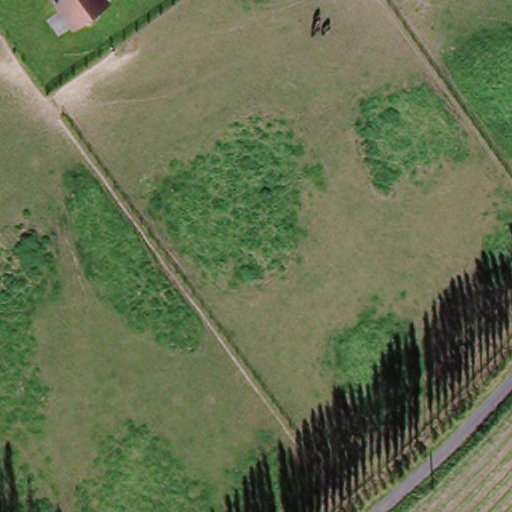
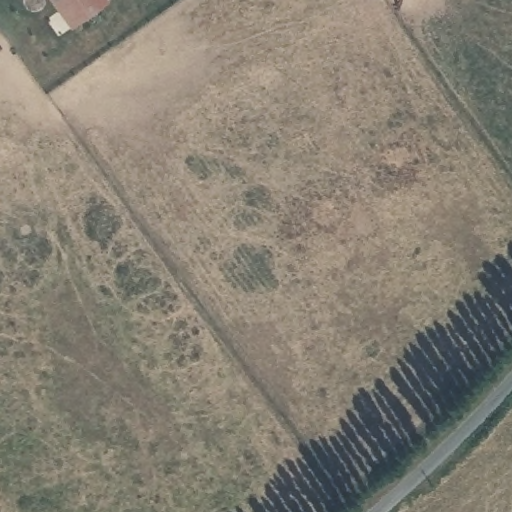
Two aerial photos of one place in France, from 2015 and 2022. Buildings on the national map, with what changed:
unchanged [(71,30),(47,0),(108,0),(111,3),(71,30)]

